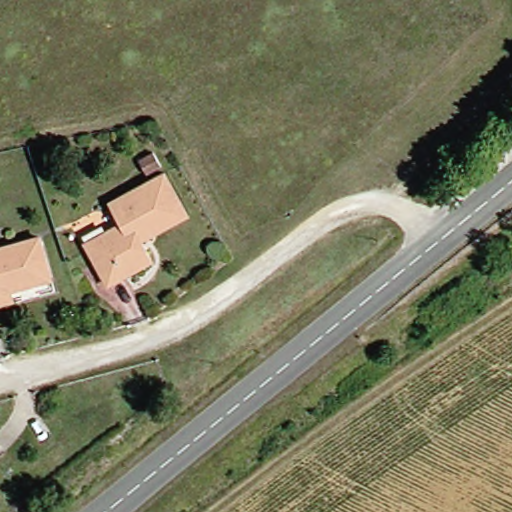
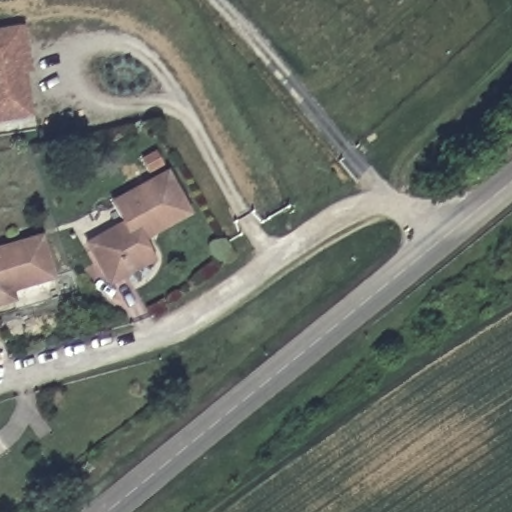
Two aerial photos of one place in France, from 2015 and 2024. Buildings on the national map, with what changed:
new [(32,73),(26,74),(33,118),(0,123),(0,29),(24,25),(32,73)]
unchanged [(155,145),(162,157),(147,166),(140,154),(155,145)]
unchanged [(157,256),(114,280),(91,238),(127,218),(115,197),(169,167),(193,211),(157,232),(146,238),(157,256)]
unchanged [(46,235),(57,276),(17,288),(20,297),(0,303),(0,249),(46,235)]

